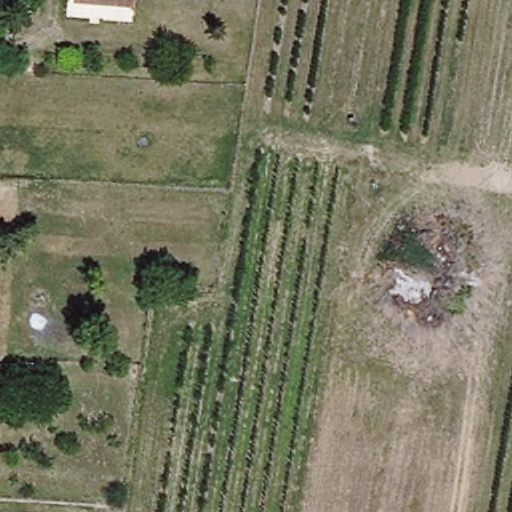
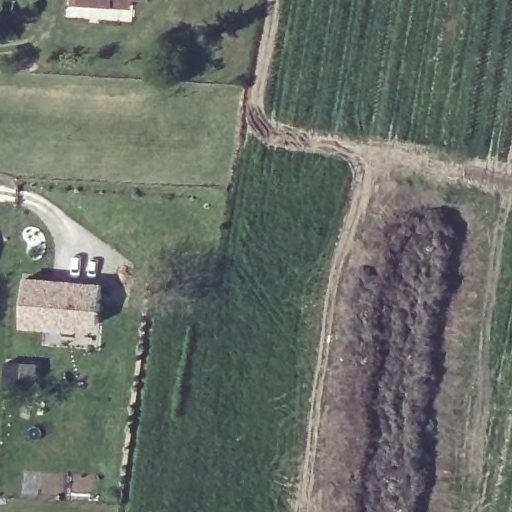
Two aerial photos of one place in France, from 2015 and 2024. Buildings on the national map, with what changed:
unchanged [(70,1),(70,0),(147,0),(146,4),(70,1)]
new [(25,276),(101,282),(100,320),(78,327),(21,323),(25,276)]

